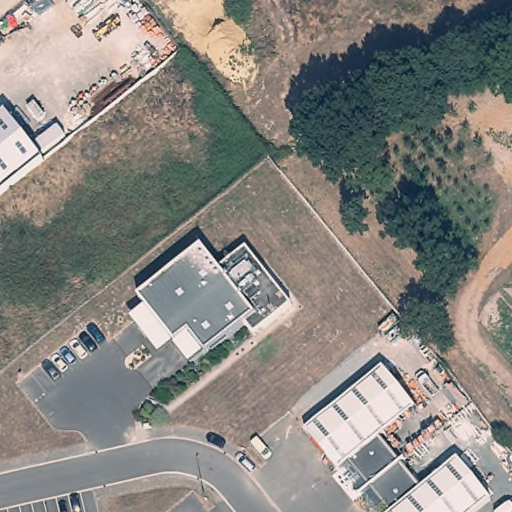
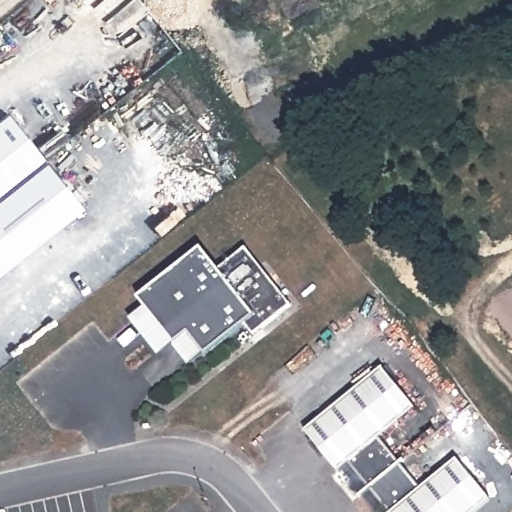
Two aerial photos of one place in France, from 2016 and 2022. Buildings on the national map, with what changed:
unchanged [(43,160),(0,193),(0,117),(6,113),(43,160)]
new [(43,160),(83,208),(0,275),(0,193),(43,160)]
unchanged [(254,336),(246,325),(205,355),(190,367),(173,347),(159,360),(128,320),(141,308),(136,301),(202,249),(219,270),(246,251),(292,307),(254,336)]
unchanged [(418,410),(381,441),(422,490),(456,459),(492,501),(479,512),(392,512),(351,463),(338,473),(304,433),(383,372),(418,410)]

